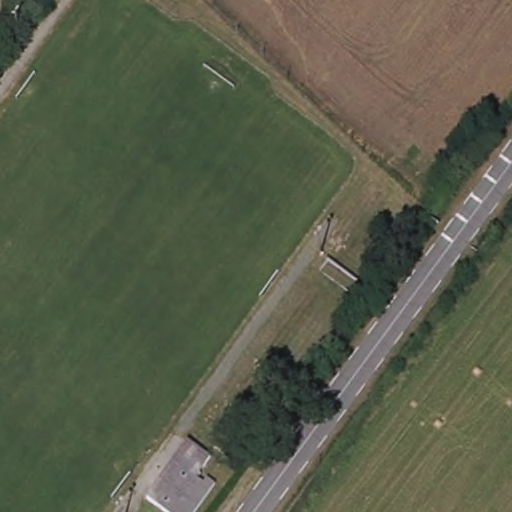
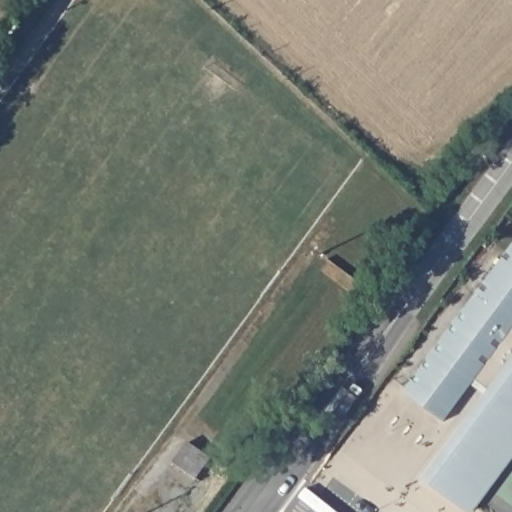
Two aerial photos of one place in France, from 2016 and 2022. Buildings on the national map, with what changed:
new [(475,512),(466,512),(423,482),(489,390),(476,381),(446,421),(405,390),(512,241),(512,462),(475,512)]
demolished [(201,478),(210,485),(215,477),(223,483),(201,512),(173,512),(153,497),(195,440),(217,456),(201,478)]

